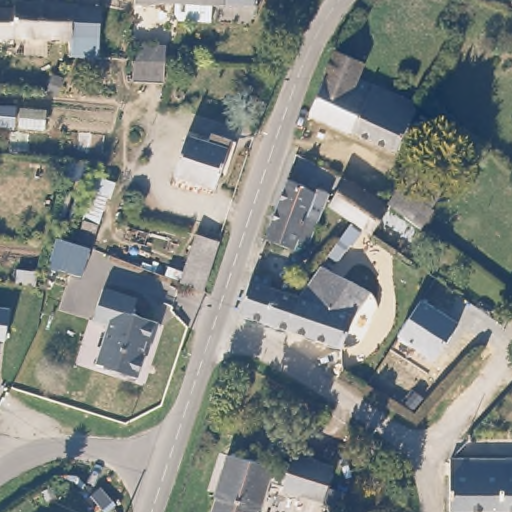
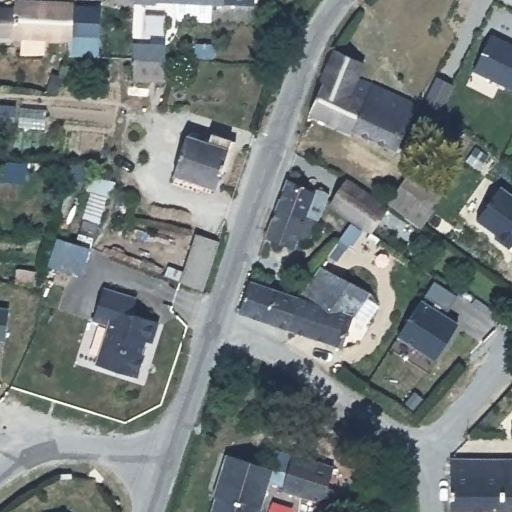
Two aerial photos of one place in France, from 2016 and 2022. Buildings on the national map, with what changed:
unchanged [(97,34),(69,32),(68,37),(13,34),(13,33),(0,32),(0,4),(15,5),(15,0),(55,0),(71,1),(71,4),(100,6),(97,34)]
unchanged [(177,21),(173,14),(173,3),(154,3),(154,5),(134,5),(134,0),(222,0),(222,4),(209,4),(209,21),(177,21)]
new [(255,6),(222,4),(222,0),(255,0),(255,6)]
new [(512,43),(512,87),(474,69),(491,33),(512,43)]
unchanged [(132,83),(132,65),(132,47),(164,47),(163,65),(162,84),(132,83)]
unchanged [(362,65),(355,83),(372,87),(407,104),(413,110),(407,124),(424,130),(418,143),(402,137),(395,153),(307,114),(332,53),(362,65)]
unchanged [(209,135),(230,142),(227,150),(215,190),(174,177),(187,137),(206,144),(209,135)]
unchanged [(386,203),(408,172),(440,194),(428,210),(432,212),(420,228),(387,206),(386,203)]
unchanged [(99,224),(75,220),(88,173),(110,182),(99,224)]
unchanged [(276,209),(286,181),(309,193),(322,195),(327,197),(325,202),(314,223),(276,209)]
unchanged [(385,209),(376,224),(369,233),(349,218),(328,204),(345,181),(385,209)]
new [(512,191),(512,247),(500,238),(502,235),(482,219),(508,188),(512,191)]
unchanged [(314,229),(313,231),(310,234),(306,247),(296,244),(292,251),(265,240),(276,209),(314,223),(314,229)]
unchanged [(219,243),(202,291),(177,282),(194,234),(219,243)]
unchanged [(97,252),(87,280),(53,268),(64,240),(97,252)]
unchanged [(297,300),(317,268),(367,295),(352,321),(337,353),(286,333),(296,300),(297,300)]
unchanged [(237,314),(252,274),(272,280),(269,290),(296,300),(286,333),(237,314)]
unchanged [(134,298),(128,313),(154,322),(147,343),(140,340),(136,351),(140,353),(132,376),(95,363),(107,324),(91,318),(101,287),(134,298)]
unchanged [(457,322),(435,360),(399,338),(422,301),(457,322)]
unchanged [(9,310),(6,342),(0,341),(0,308),(9,310)]
unchanged [(319,503),(278,490),(280,486),(266,482),(257,510),(252,509),(251,512),(208,512),(214,496),(211,496),(226,454),(284,473),(291,454),(331,468),(319,503)]
unchanged [(449,455),(504,455),(512,455),(512,507),(448,507),(449,455)]

